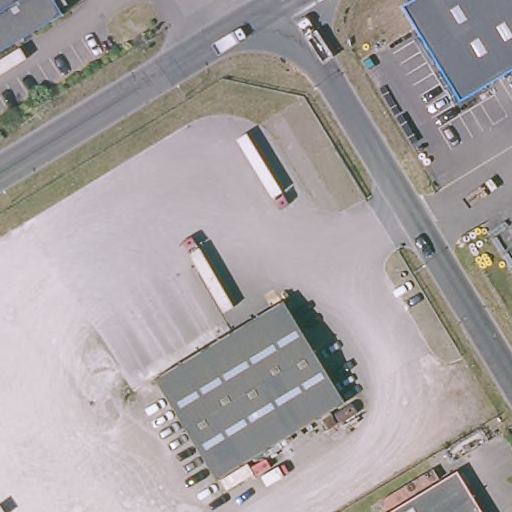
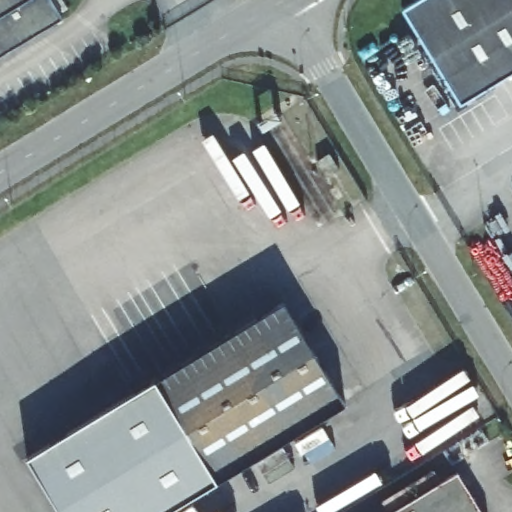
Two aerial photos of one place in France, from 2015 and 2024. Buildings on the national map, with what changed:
unchanged [(59,6),(62,11),(0,49),(0,0),(67,0),(67,1),(59,6)]
unchanged [(512,0),(512,70),(460,101),(404,6),(414,0),(512,0)]
unchanged [(349,405),(221,481),(160,378),(287,302),(349,405)]
new [(221,481),(167,512),(59,512),(26,456),(160,378),(221,481)]
unchanged [(457,466),(485,512),(381,512),(457,466)]

